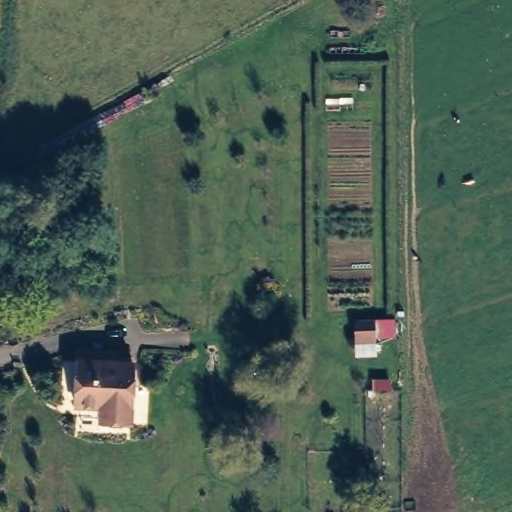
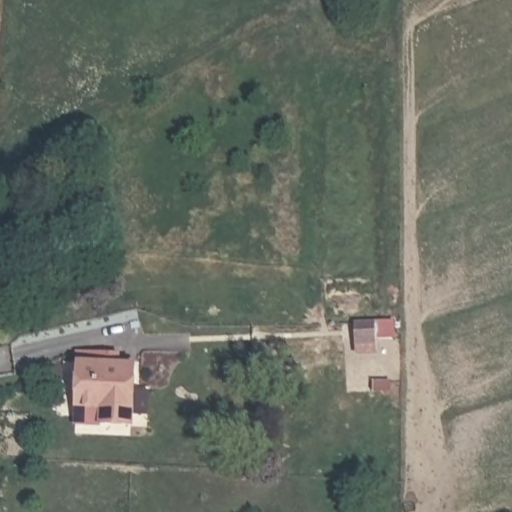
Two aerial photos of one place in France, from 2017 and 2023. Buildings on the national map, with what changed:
unchanged [(105,406),(84,412),(72,369),(127,352),(143,409),(120,416),(109,420),(105,406)]

